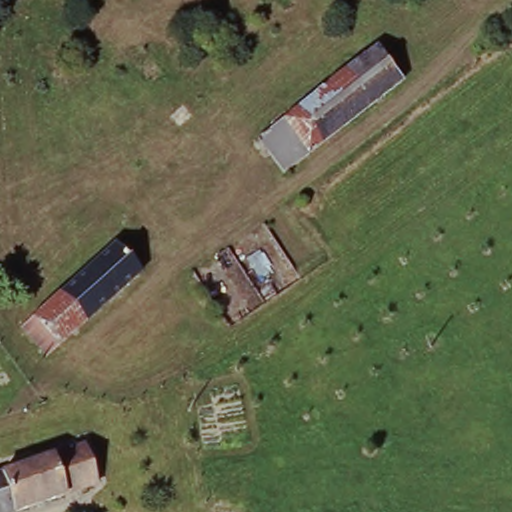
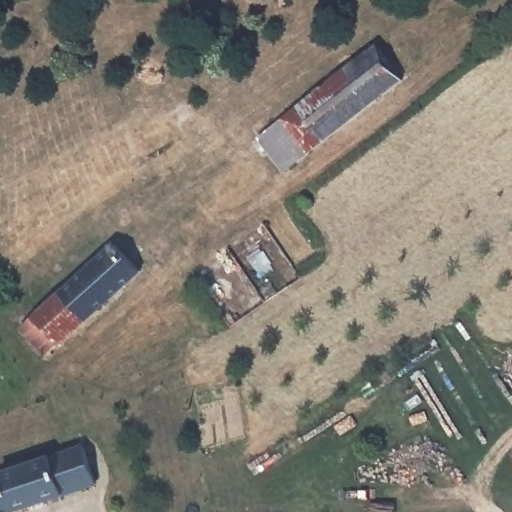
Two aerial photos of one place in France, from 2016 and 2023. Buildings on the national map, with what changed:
unchanged [(387,52),(410,82),(285,170),(259,136),(387,52)]
unchanged [(22,325),(123,245),(147,275),(48,355),(22,325)]
unchanged [(95,485),(12,512),(0,512),(0,475),(82,446),(95,485)]

